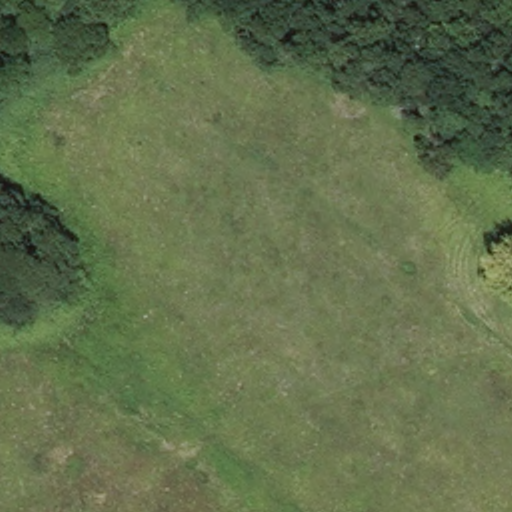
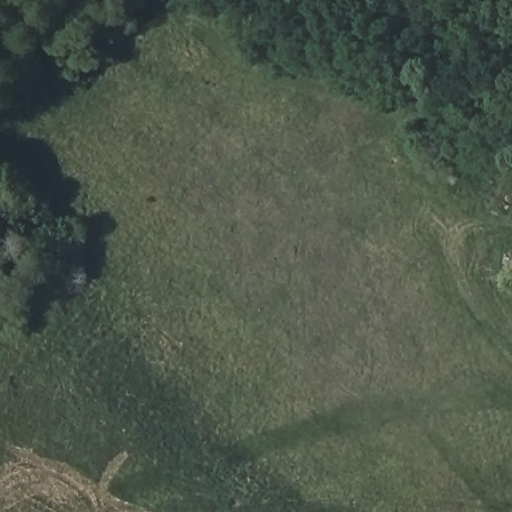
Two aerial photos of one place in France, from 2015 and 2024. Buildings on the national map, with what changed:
[]

